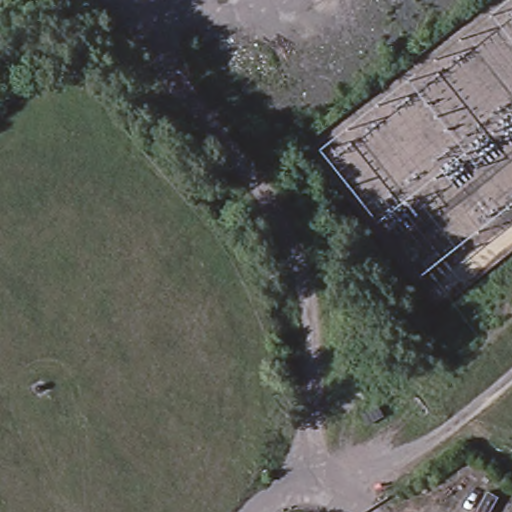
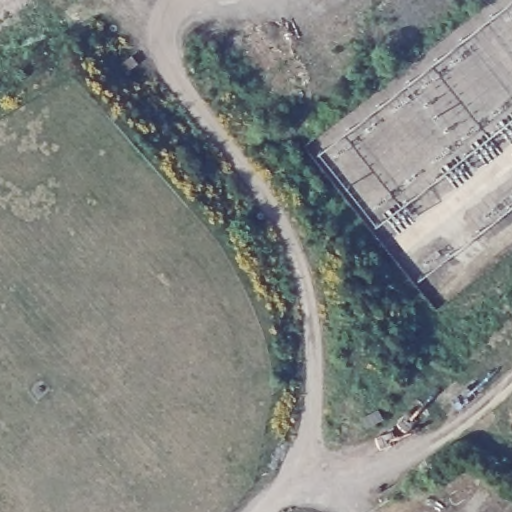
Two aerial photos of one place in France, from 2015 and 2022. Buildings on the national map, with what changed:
unchanged [(418,415),(391,436),(351,385),(379,363),(418,415)]
unchanged [(444,512),(433,512),(427,506),(449,480),(462,492),(444,512)]

